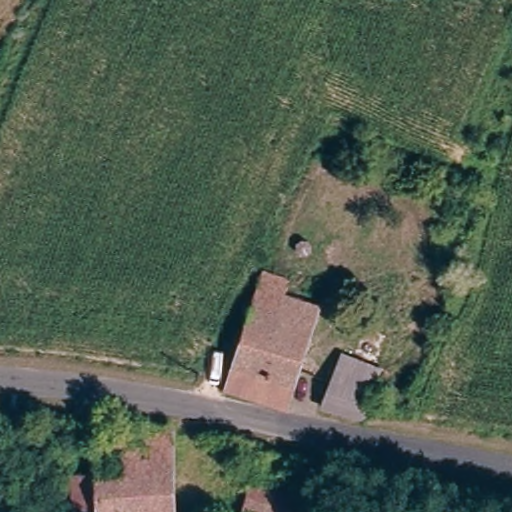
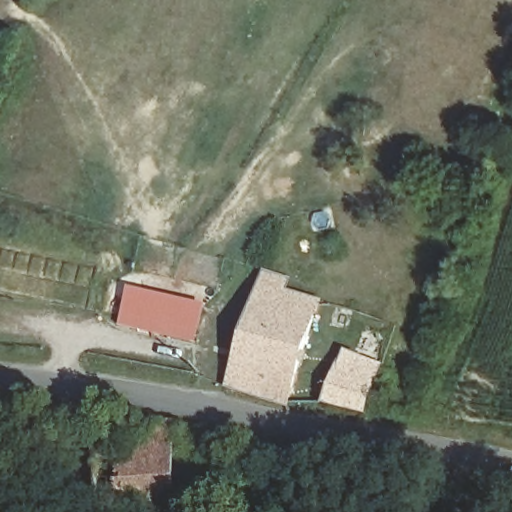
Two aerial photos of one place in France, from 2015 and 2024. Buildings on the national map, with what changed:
unchanged [(295,279),(289,291),(328,305),(291,414),(223,391),(266,268),(295,279)]
new [(206,307),(197,345),(119,328),(128,290),(206,307)]
unchanged [(381,368),(379,375),(388,378),(383,390),(374,386),(365,415),(327,403),(345,353),(381,368)]
unchanged [(78,512),(76,478),(101,475),(101,430),(176,429),(177,443),(181,512),(78,512)]
unchanged [(292,498),(308,502),(307,512),(285,512),(248,512),(255,477),(294,485),(292,498)]

